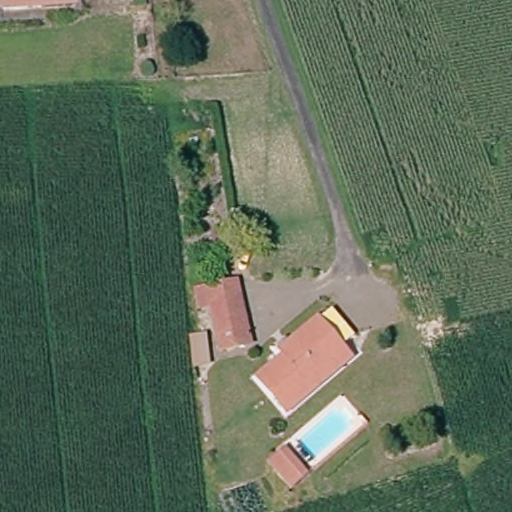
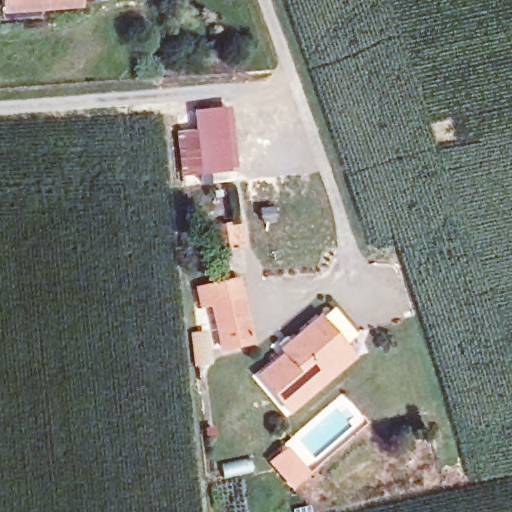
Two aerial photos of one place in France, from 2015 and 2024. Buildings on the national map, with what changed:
unchanged [(7,8),(7,0),(76,0),(76,6),(7,8)]
new [(192,110),(232,106),(240,173),(199,175),(179,177),(174,131),(194,129),(192,110)]
new [(245,222),(247,248),(211,251),(207,227),(245,222)]
unchanged [(249,341),(221,347),(213,302),(200,304),(197,290),(236,282),(239,296),(240,295),(249,341)]
unchanged [(325,381),(285,416),(257,382),(283,359),(279,354),(317,323),(318,323),(331,313),(353,339),(340,351),(343,355),(349,361),(325,381)]
unchanged [(282,456),(295,471),(286,479),(273,464),(282,456)]

